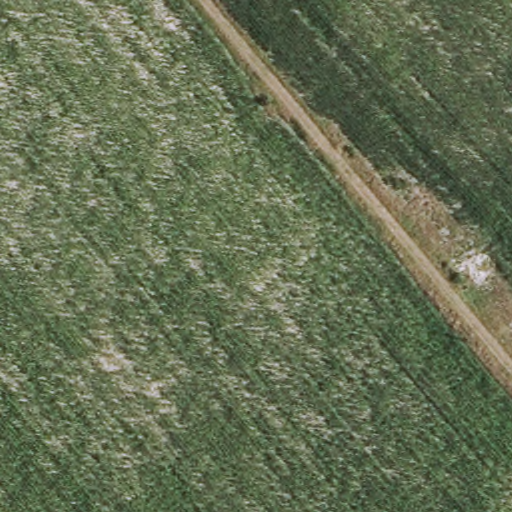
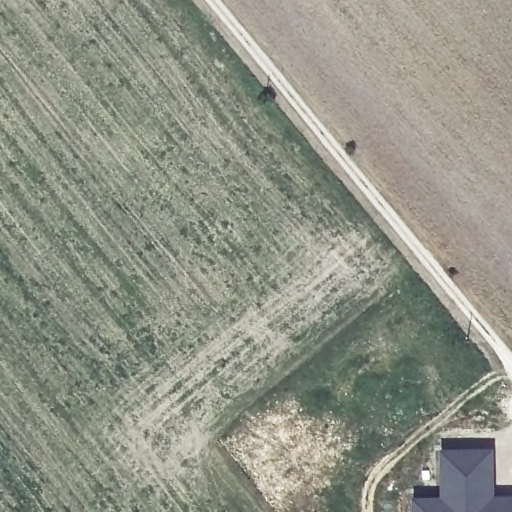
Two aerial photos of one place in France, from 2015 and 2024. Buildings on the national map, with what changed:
new [(415,502),(443,501),(442,484),(441,454),(490,452),(490,482),(491,500),(512,499),(512,512),(416,512),(415,502)]

